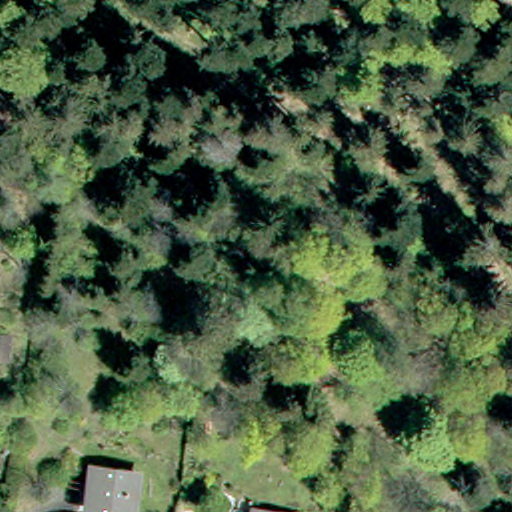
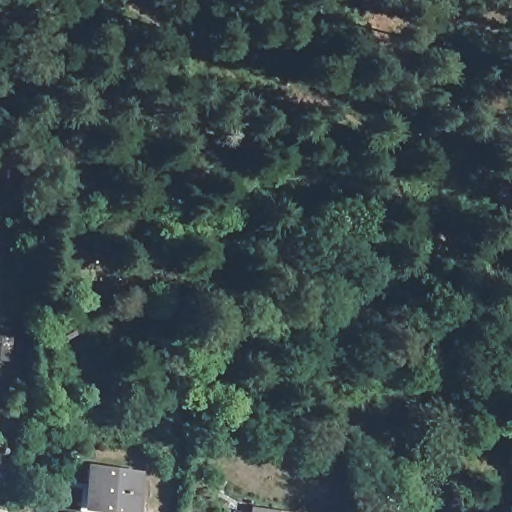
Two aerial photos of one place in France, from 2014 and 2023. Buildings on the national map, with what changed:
unchanged [(6,365),(0,363),(0,343),(10,345),(6,365)]
unchanged [(132,473),(127,508),(83,503),(88,468),(132,473)]
unchanged [(14,483),(8,512),(3,512),(0,511),(0,480),(14,483)]
unchanged [(200,512),(180,512),(182,501),(202,504),(200,512)]
unchanged [(245,512),(245,509),(268,512),(245,512)]

